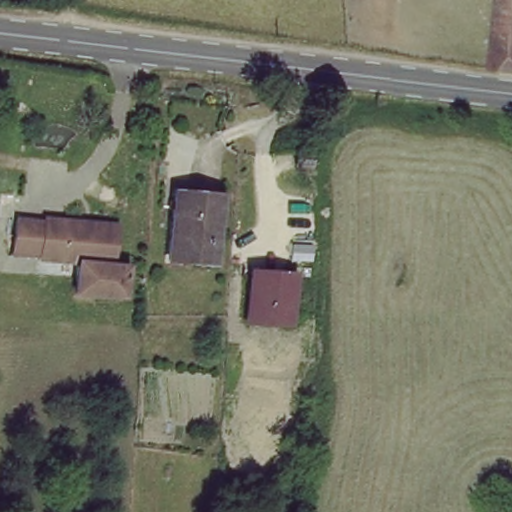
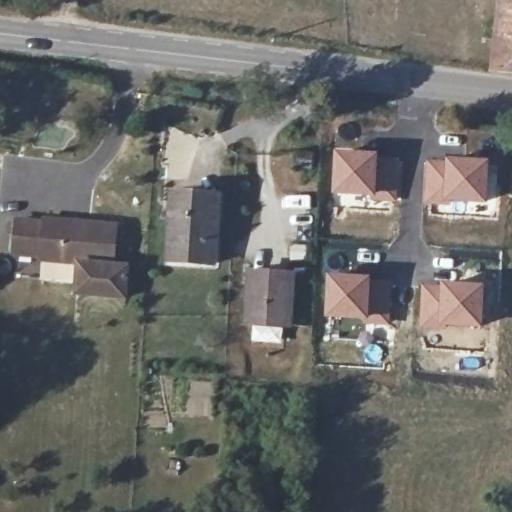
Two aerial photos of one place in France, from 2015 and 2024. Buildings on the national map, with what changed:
unchanged [(503,0),(512,0),(512,62),(492,60),(503,0)]
new [(334,150),(380,152),(378,198),(330,194),(334,150)]
new [(425,158),(490,159),(486,204),(422,204),(425,158)]
unchanged [(218,261),(177,258),(180,193),(221,194),(218,261)]
unchanged [(102,259),(120,259),(118,291),(67,288),(68,257),(30,256),(31,247),(3,245),(5,216),(32,219),(33,213),(105,216),(102,259)]
unchanged [(291,318),(253,315),(256,273),(291,274),(291,318)]
new [(390,323),(370,322),(325,317),(328,273),(373,276),(373,280),(391,282),(390,323)]
new [(420,281),(485,283),(483,328),(417,328),(420,281)]

